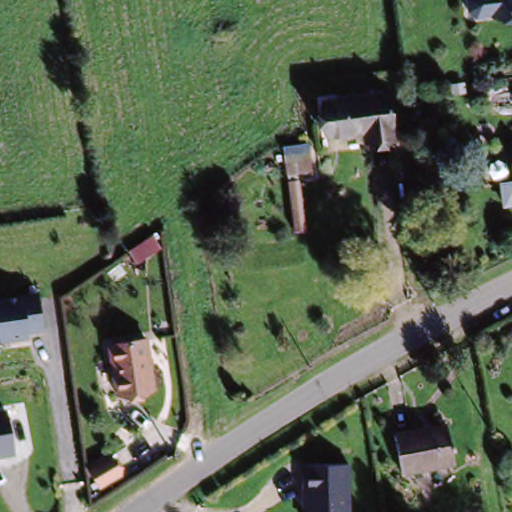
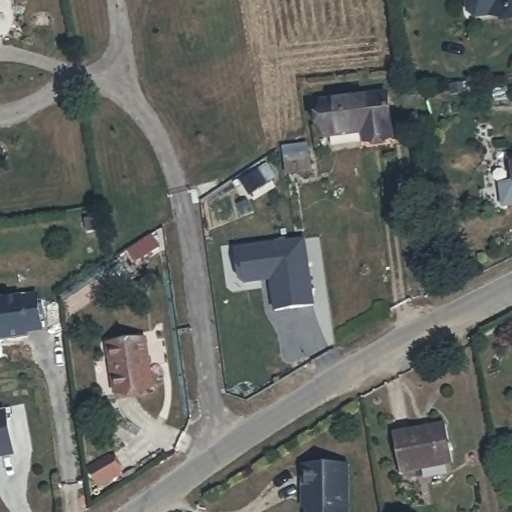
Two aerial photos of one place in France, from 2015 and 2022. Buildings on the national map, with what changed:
unchanged [(486,15),(484,0),(512,0),(512,12),(486,15)]
unchanged [(365,142),(364,132),(322,136),(318,100),(387,92),(393,140),(365,142)]
unchanged [(289,229),(283,144),(309,140),(311,172),(301,174),(305,226),(289,229)]
unchanged [(508,154),(512,153),(512,173),(508,154)]
unchanged [(159,252),(133,270),(124,256),(151,240),(159,252)]
new [(313,242),(322,307),(286,312),(281,280),(258,284),(248,280),(244,251),(313,242)]
unchanged [(31,334),(31,340),(0,343),(0,299),(40,292),(44,332),(31,334)]
unchanged [(113,393),(108,341),(145,336),(153,388),(113,393)]
unchanged [(0,464),(0,420),(9,419),(15,462),(0,464)]
unchanged [(400,466),(394,434),(442,424),(448,457),(400,466)]
unchanged [(301,475),(345,466),(354,512),(307,512),(301,475)]
unchanged [(120,486),(100,499),(89,482),(111,469),(120,486)]

